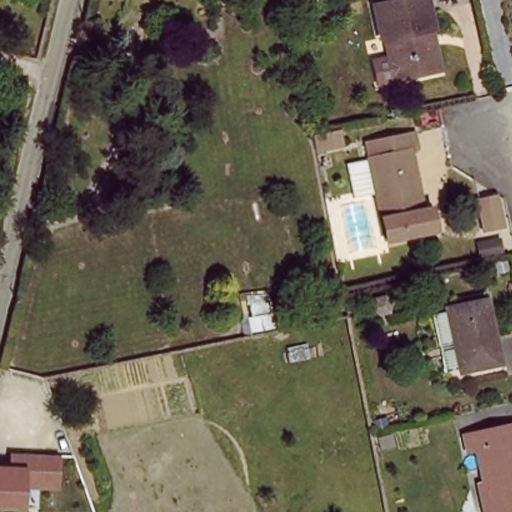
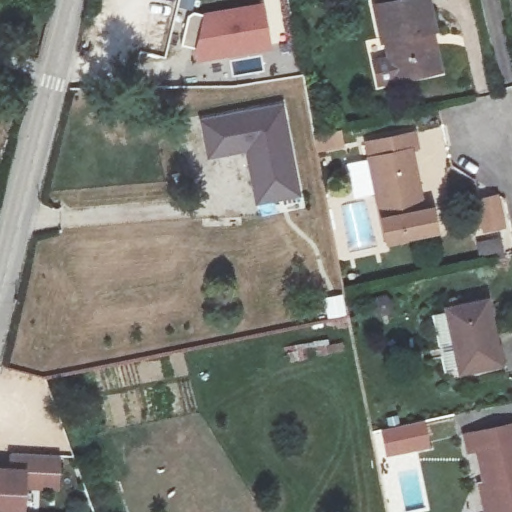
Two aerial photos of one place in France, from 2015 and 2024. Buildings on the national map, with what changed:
unchanged [(397,76),(389,40),(382,42),(374,5),(402,0),(429,0),(435,31),(428,33),(429,43),(434,69),(397,76)]
new [(266,4),(273,51),(197,64),(199,51),(181,48),(185,29),(187,20),(189,16),(191,15),(192,14),(194,14),(196,14),(204,15),(204,14),(266,4)]
new [(288,104),(304,198),(256,206),(247,155),(208,161),(201,121),(288,104)]
unchanged [(411,130),(415,146),(407,149),(418,207),(426,205),(432,229),(384,237),(363,140),(411,130)]
unchanged [(507,230),(485,235),(478,202),(500,196),(507,230)]
unchanged [(487,301),(502,365),(461,373),(446,309),(487,301)]
unchanged [(512,431),(512,512),(493,512),(488,488),(485,488),(477,452),(465,455),(461,439),(488,435),(512,431)]
unchanged [(24,488),(23,512),(0,512),(0,465),(11,465),(12,452),(62,455),(60,491),(24,488)]

